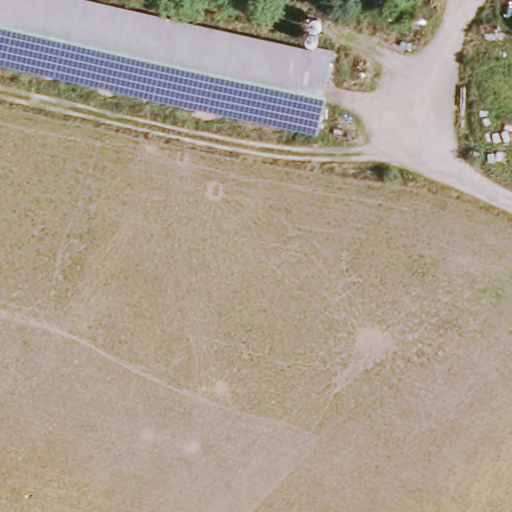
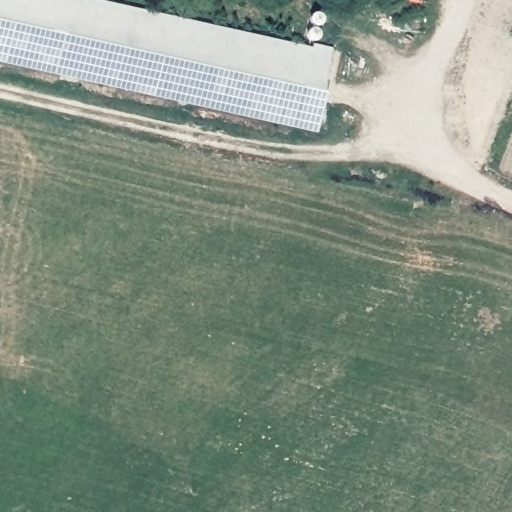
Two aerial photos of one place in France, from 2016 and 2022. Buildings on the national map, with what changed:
unchanged [(310,53),(311,47),(331,51),(325,83),(304,78),(294,127),(0,61),(0,0),(71,0),(310,53)]

